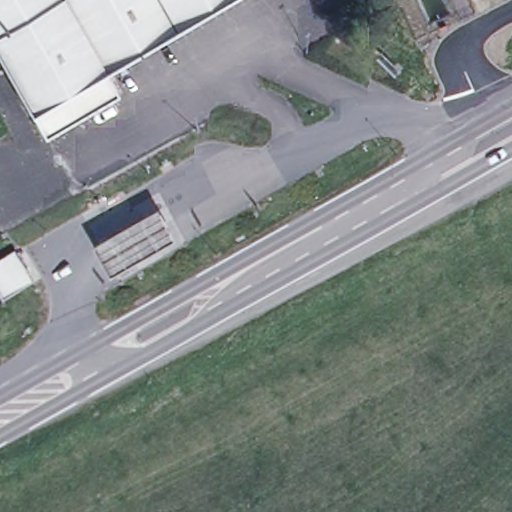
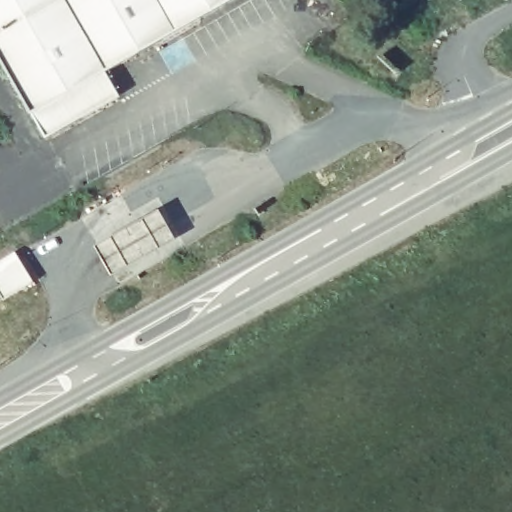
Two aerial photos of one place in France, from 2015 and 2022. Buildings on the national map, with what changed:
unchanged [(105,68),(118,92),(45,134),(0,56),(0,0),(224,0),(105,68)]
unchanged [(112,276),(93,242),(158,208),(175,241),(112,276)]
unchanged [(14,249),(31,275),(6,291),(0,281),(0,259),(14,249)]

